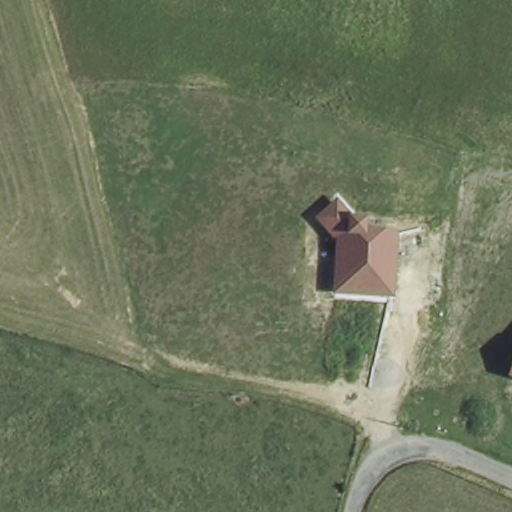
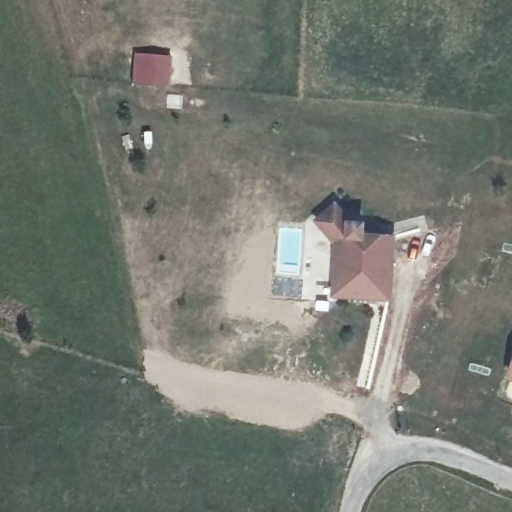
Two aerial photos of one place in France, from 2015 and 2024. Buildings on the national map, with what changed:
new [(135,54),(171,57),(168,87),(133,85),(135,54)]
unchanged [(370,220),(369,232),(398,234),(393,301),(330,297),(335,243),(314,220),(339,200),(354,219),(370,220)]
unchanged [(505,377),(512,354),(512,379),(505,377)]

